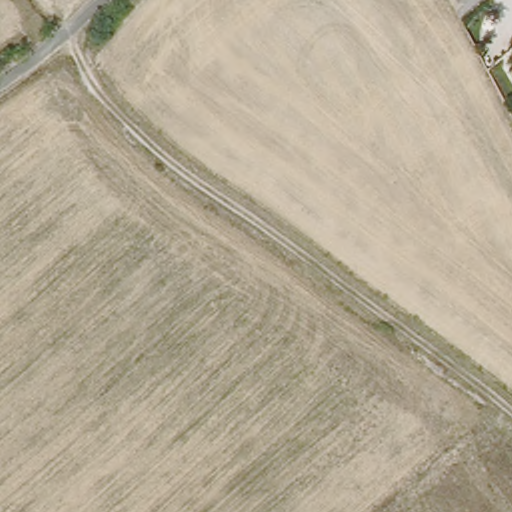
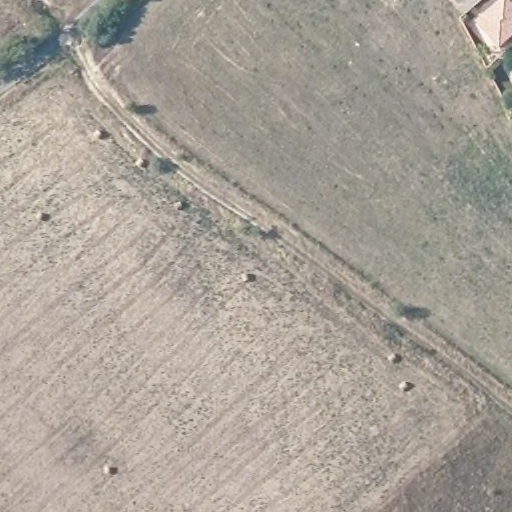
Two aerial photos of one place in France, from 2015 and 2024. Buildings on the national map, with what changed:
new [(498,50),(475,24),(502,0),(508,0),(512,4),(512,39),(498,50)]

